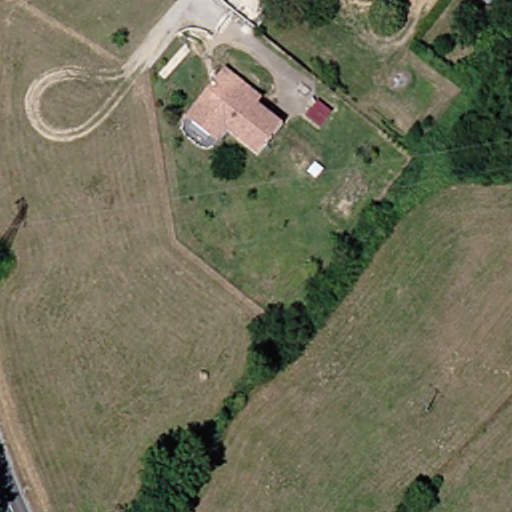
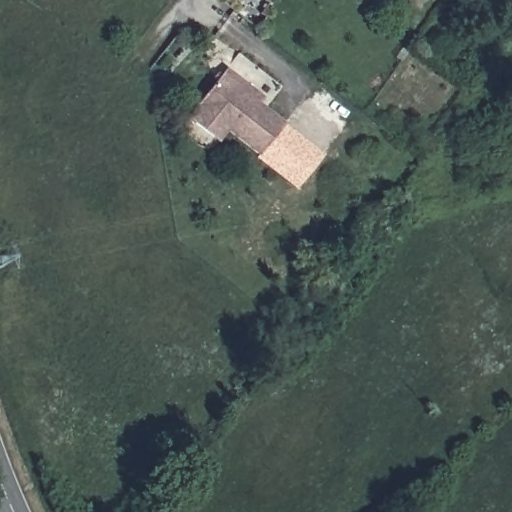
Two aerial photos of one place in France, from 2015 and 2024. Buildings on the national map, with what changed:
unchanged [(475,0),(502,0),(495,13),(475,0)]
unchanged [(225,70),(250,90),(251,102),(285,125),(261,158),(228,133),(219,144),(187,120),(196,108),(225,70)]
new [(285,125),(325,155),(296,191),(259,162),(261,158),(285,125)]

